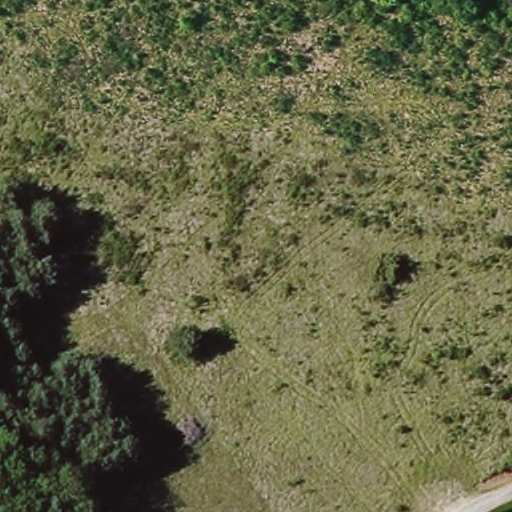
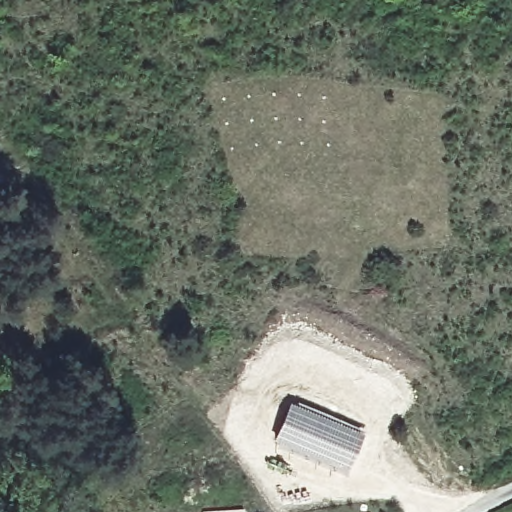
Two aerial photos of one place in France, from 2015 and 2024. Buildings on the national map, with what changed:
new [(289,401),(366,430),(348,476),(272,445),(289,401)]
new [(244,511),(244,512),(223,512),(244,511)]

